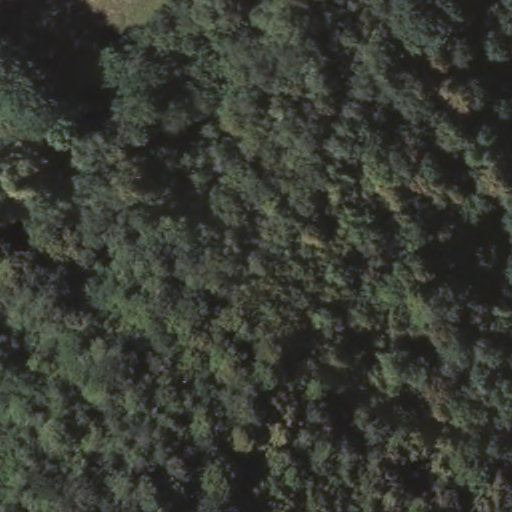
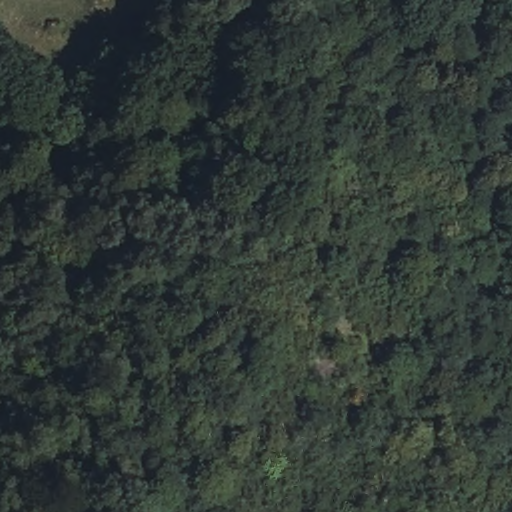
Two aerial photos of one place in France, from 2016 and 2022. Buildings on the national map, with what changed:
[]

